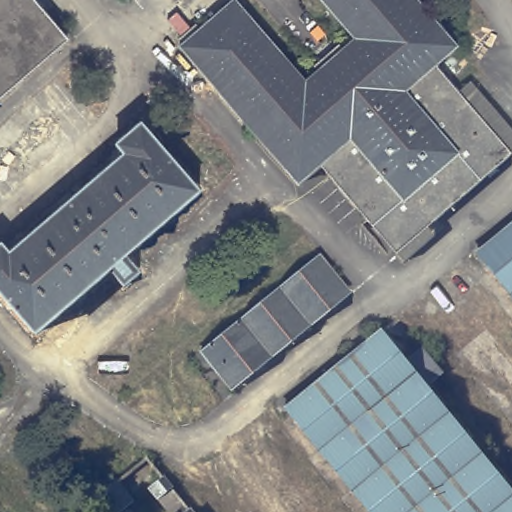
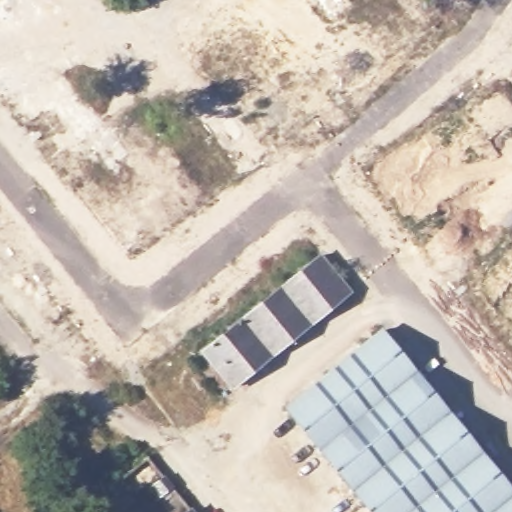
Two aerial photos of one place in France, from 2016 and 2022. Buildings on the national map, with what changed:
demolished [(70,40),(0,100),(0,0),(36,0),(70,40)]
demolished [(302,188),(183,49),(207,29),(208,30),(239,3),(309,85),(360,41),(325,0),(419,0),(461,50),(438,69),(512,155),(512,158),(399,256),(324,168),(302,188)]
demolished [(0,292),(0,246),(1,246),(9,255),(124,155),(116,146),(142,124),(200,192),(124,257),(139,274),(122,288),(107,271),(35,334),(0,292)]
demolished [(512,223),(512,297),(476,253),(512,223)]
unchanged [(202,353),(319,256),(348,291),(230,388),(202,353)]
unchanged [(379,326),(404,357),(420,343),(441,367),(424,381),(512,489),(512,512),(373,512),(285,403),(379,326)]
unchanged [(161,498),(154,489),(168,478),(196,512),(174,512),(162,497),(161,498)]

